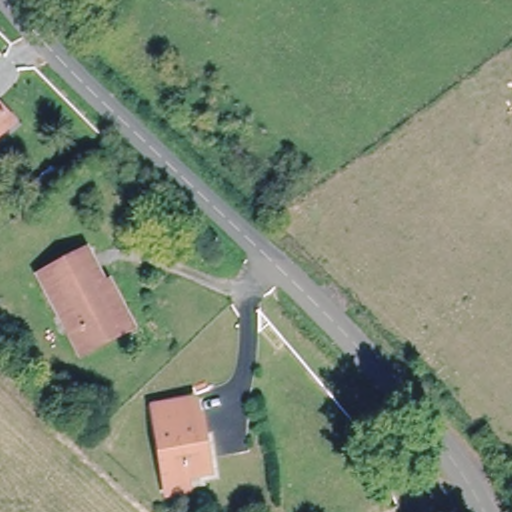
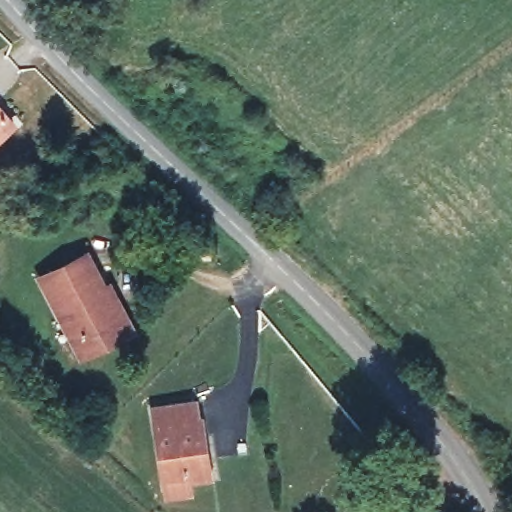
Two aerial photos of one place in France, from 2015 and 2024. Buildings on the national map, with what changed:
unchanged [(0,139),(0,109),(15,126),(0,139)]
unchanged [(126,325),(80,350),(40,277),(85,254),(126,325)]
unchanged [(155,488),(153,476),(141,404),(178,397),(181,413),(186,412),(195,468),(175,472),(177,484),(155,488)]

